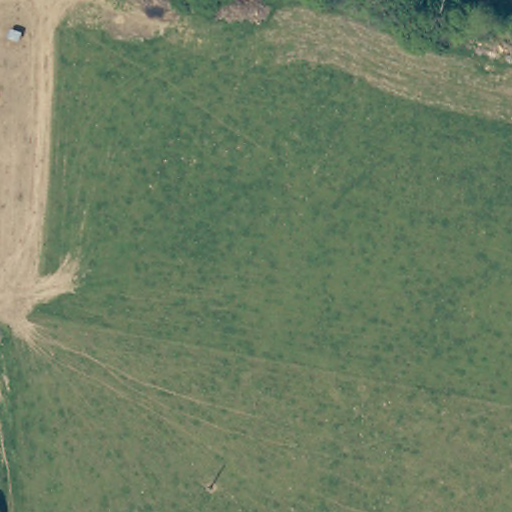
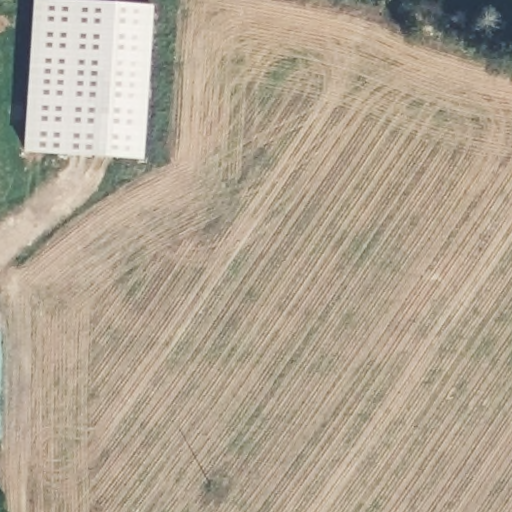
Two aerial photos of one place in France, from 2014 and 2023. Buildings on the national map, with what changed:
new [(62,0),(153,6),(143,160),(24,151),(34,0),(62,0)]

